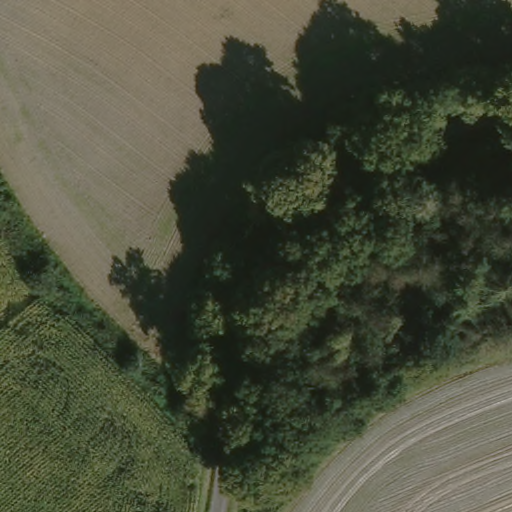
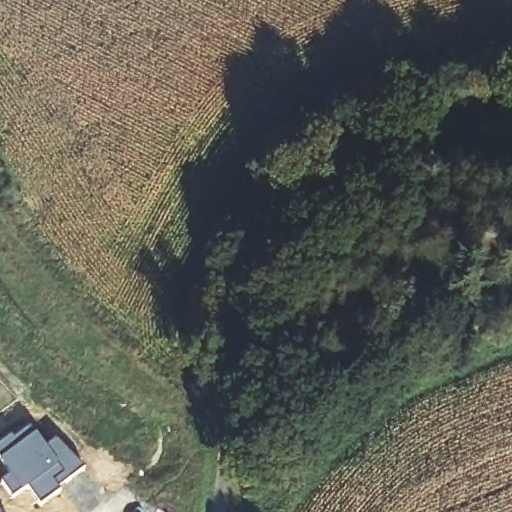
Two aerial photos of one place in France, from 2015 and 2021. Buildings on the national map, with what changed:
new [(10,437),(13,440),(29,428),(43,449),(55,441),(84,471),(70,481),(65,475),(56,482),(62,491),(40,507),(27,489),(12,499),(0,483),(10,475),(0,462),(0,445),(10,437)]

